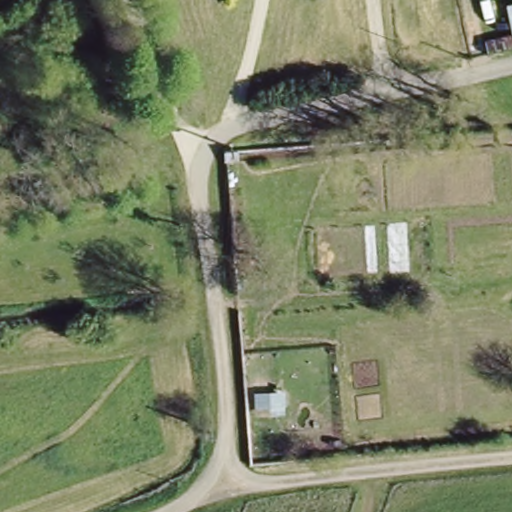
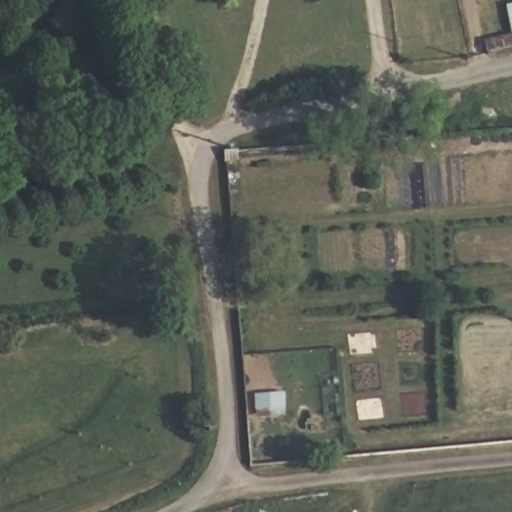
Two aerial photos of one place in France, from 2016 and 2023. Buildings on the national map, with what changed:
unchanged [(512,35),(512,47),(480,55),(477,43),(512,35)]
unchanged [(320,63),(321,71),(272,82),(270,74),(320,63)]

